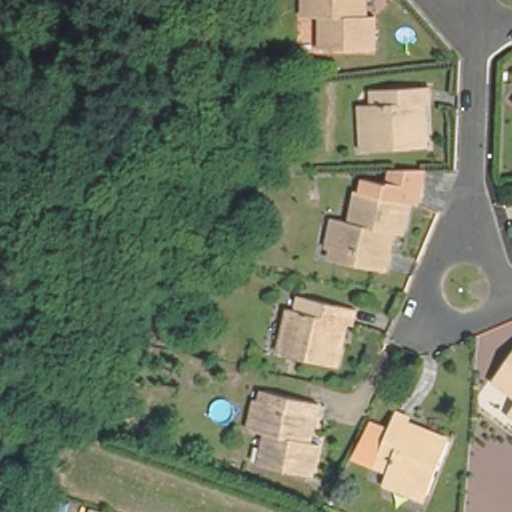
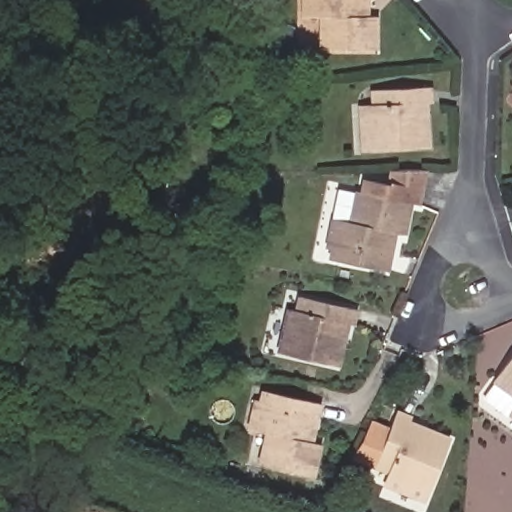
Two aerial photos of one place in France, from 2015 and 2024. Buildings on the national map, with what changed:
unchanged [(322,48),(322,16),(310,16),(300,16),(300,0),(365,0),(366,6),(366,16),(375,16),(376,49),(322,48)]
unchanged [(360,105),(369,105),(375,105),(374,90),(431,86),(431,101),(427,101),(427,122),(428,147),(370,149),(361,150),(360,105)]
unchanged [(381,270),(326,259),(328,249),(319,247),(326,218),(334,220),(347,223),(354,191),(357,192),(360,180),(386,185),(389,169),(414,169),(407,202),(399,234),(391,232),(389,241),(381,270)]
unchanged [(341,371),(285,359),(277,358),(287,314),(295,316),(302,318),(305,302),(359,315),(356,329),(352,328),(347,347),(341,371)]
unchanged [(499,379),(512,360),(512,388),(499,379)]
unchanged [(319,409),(310,446),(320,449),(313,481),(259,469),(266,438),(254,436),(246,435),(253,406),(260,408),(262,396),(319,409)]
unchanged [(384,482),(388,474),(390,469),(376,463),(353,453),(361,440),(370,419),(391,428),(398,410),(411,416),(409,421),(428,429),(451,439),(429,492),(425,501),(384,482)]

